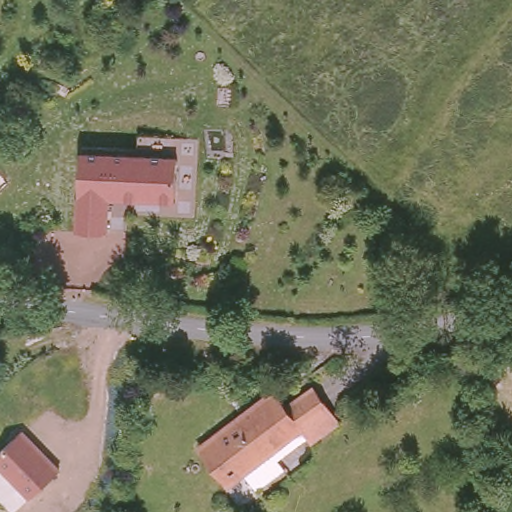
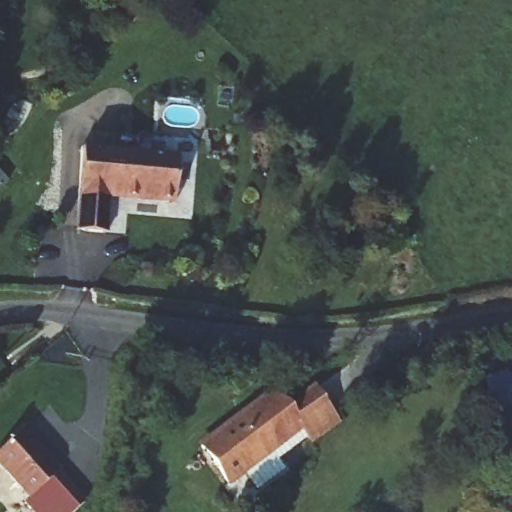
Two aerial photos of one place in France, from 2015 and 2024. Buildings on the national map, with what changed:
unchanged [(111,200),(107,236),(75,231),(83,149),(179,156),(175,203),(111,200)]
unchanged [(296,416),(308,429),(231,487),(199,445),(274,388),(296,416)]
unchanged [(296,416),(318,394),(337,414),(342,420),(320,442),(312,433),(296,416)]
unchanged [(31,498),(0,467),(0,450),(23,428),(62,468),(31,498)]
new [(31,498),(60,470),(85,497),(70,512),(32,512),(25,503),(31,498)]

